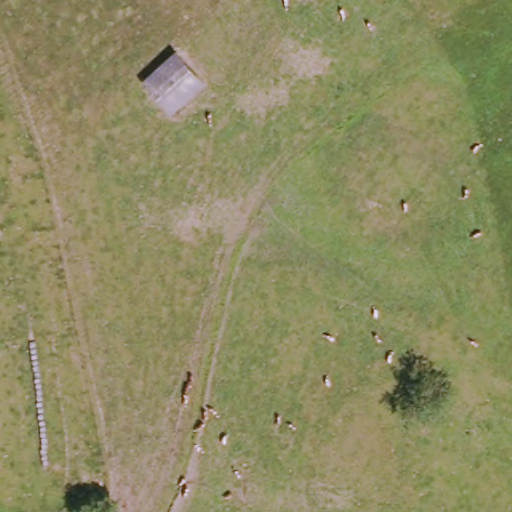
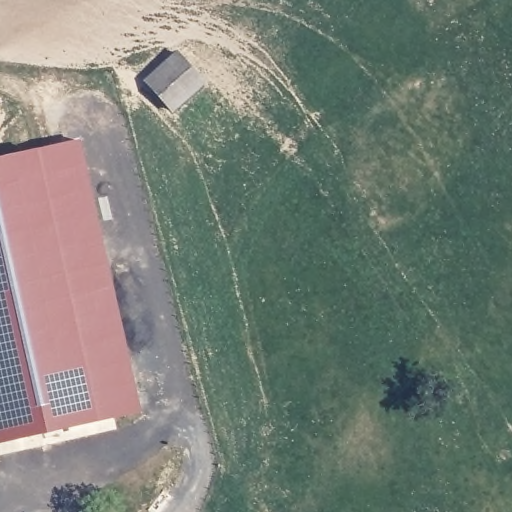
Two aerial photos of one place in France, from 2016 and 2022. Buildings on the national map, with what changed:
unchanged [(173,116),(144,87),(180,57),(189,65),(184,70),(210,85),(173,116)]
new [(0,157),(35,149),(80,140),(141,411),(97,421),(0,442),(0,157)]

